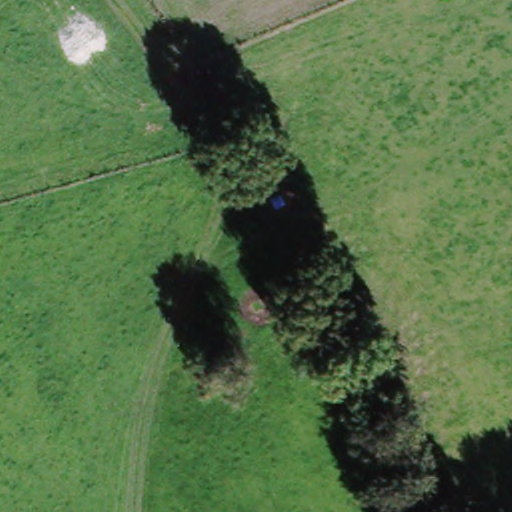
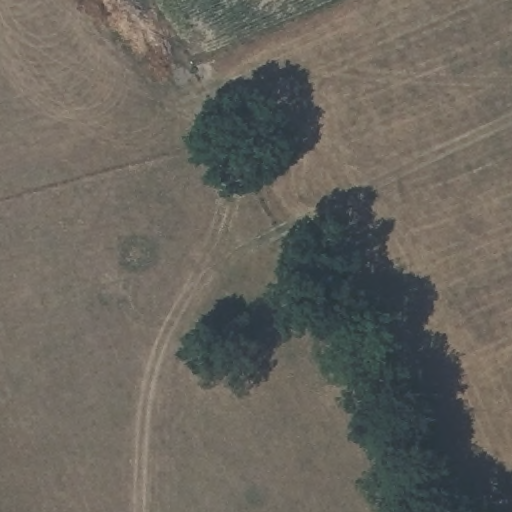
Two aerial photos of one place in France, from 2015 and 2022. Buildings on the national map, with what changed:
[]

